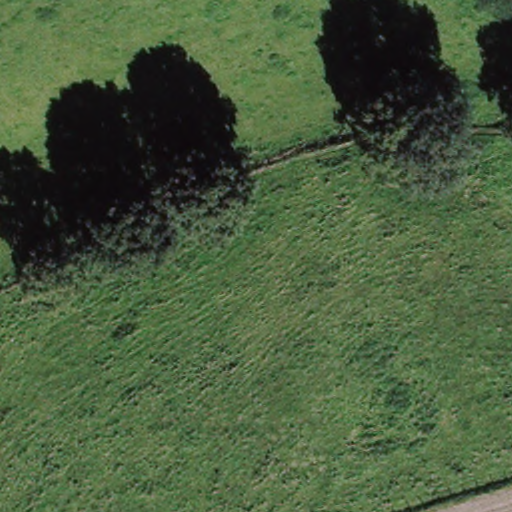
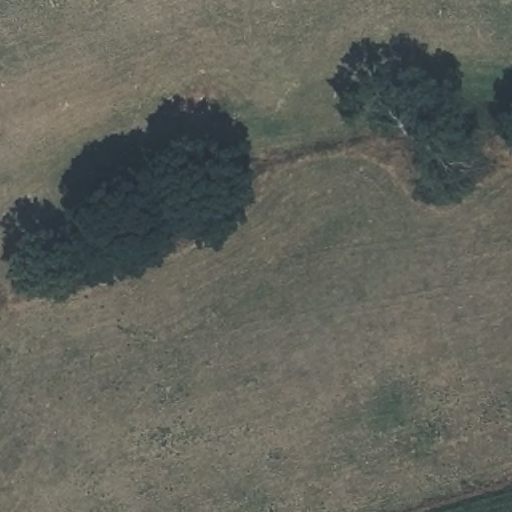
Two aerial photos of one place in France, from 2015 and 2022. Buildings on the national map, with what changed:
[]

